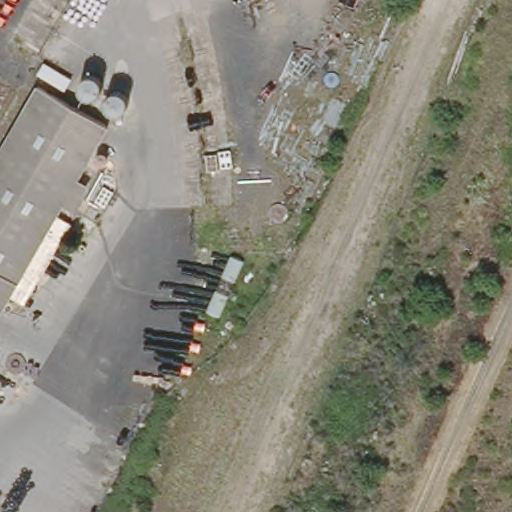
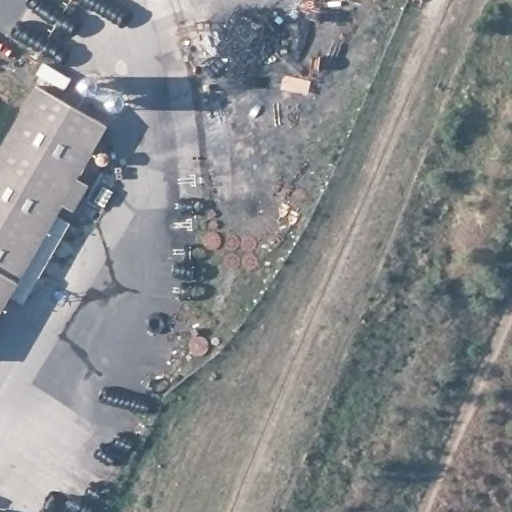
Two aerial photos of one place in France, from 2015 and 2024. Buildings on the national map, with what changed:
unchanged [(43,62),(72,78),(66,91),(37,74),(43,62)]
unchanged [(0,307),(0,154),(8,141),(39,86),(106,124),(8,294),(0,307)]

